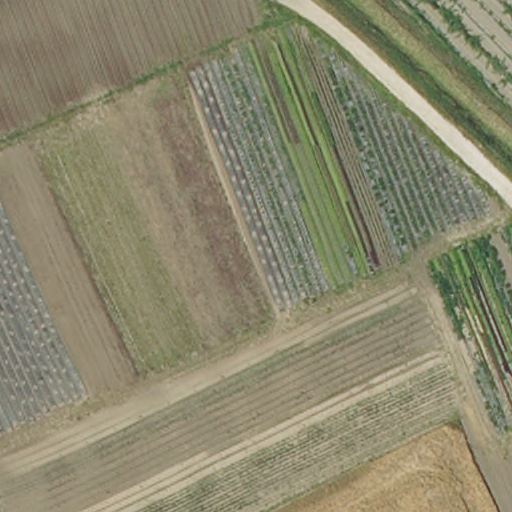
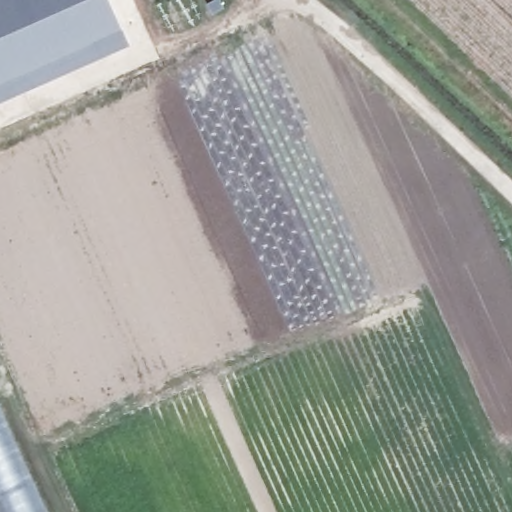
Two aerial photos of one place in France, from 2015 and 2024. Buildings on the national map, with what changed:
new [(127,43),(0,101),(0,0),(109,0),(127,43)]
new [(44,512),(0,512),(0,412),(44,512)]

